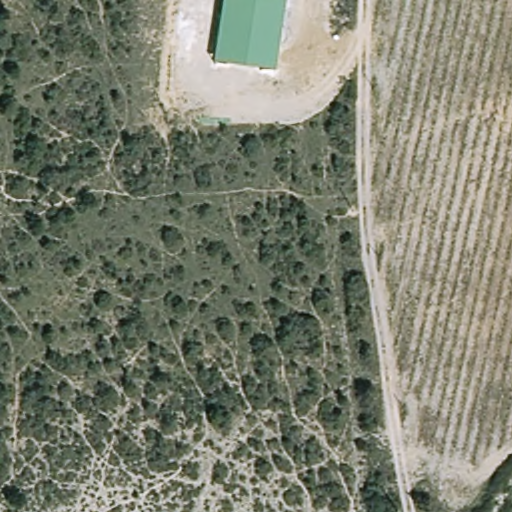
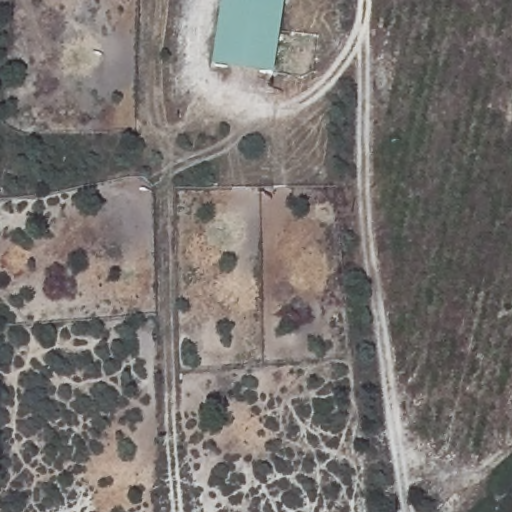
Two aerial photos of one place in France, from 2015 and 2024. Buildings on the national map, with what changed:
unchanged [(215,65),(224,0),(286,0),(273,73),(215,65)]

